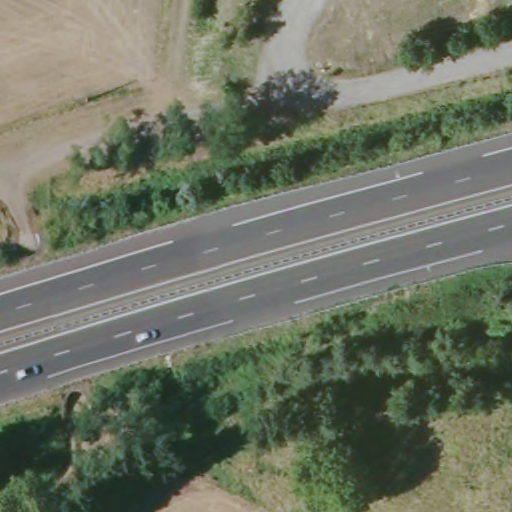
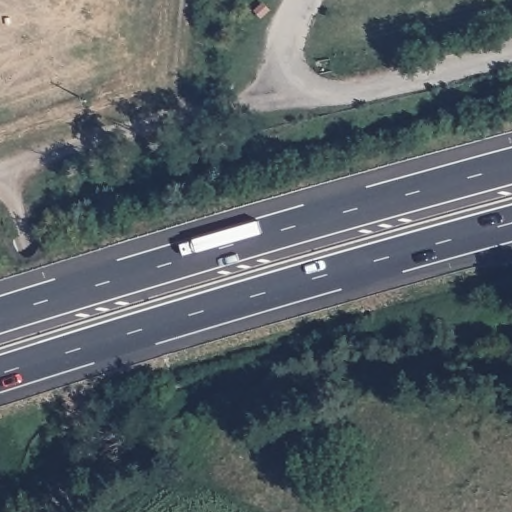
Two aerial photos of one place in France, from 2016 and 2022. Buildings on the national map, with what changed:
[]

